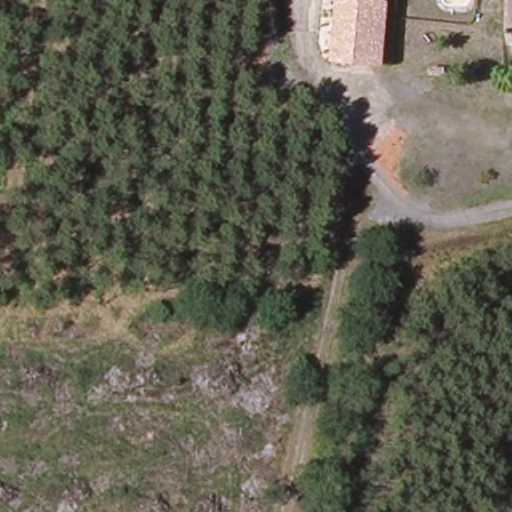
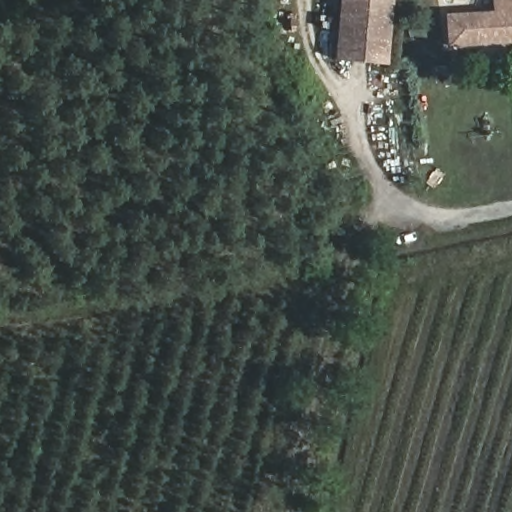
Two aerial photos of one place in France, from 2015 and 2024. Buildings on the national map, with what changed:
unchanged [(329,49),(339,0),(392,0),(386,59),(329,49)]
new [(446,48),(442,13),(492,10),(491,0),(507,0),(512,43),(446,48)]
unchanged [(512,43),(507,0),(512,0),(512,43)]

